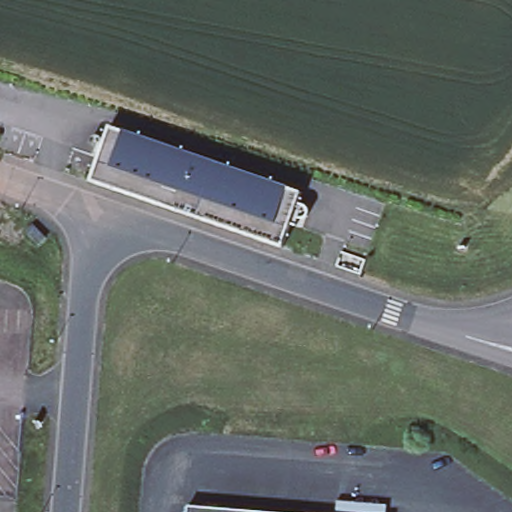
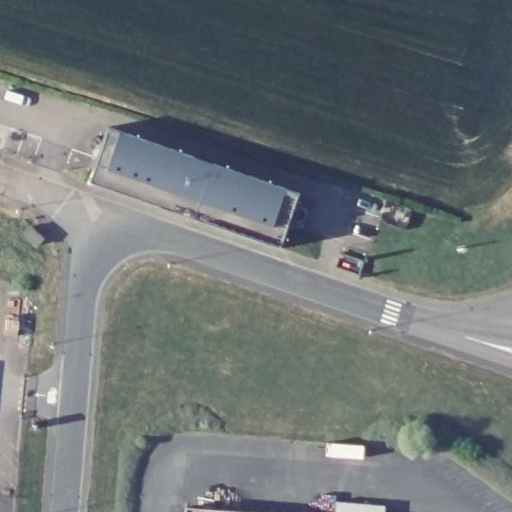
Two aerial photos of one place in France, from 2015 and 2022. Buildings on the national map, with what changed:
unchanged [(112,127),(305,194),(286,249),(93,183),(112,127)]
unchanged [(188,508),(235,512),(188,512),(188,508)]

